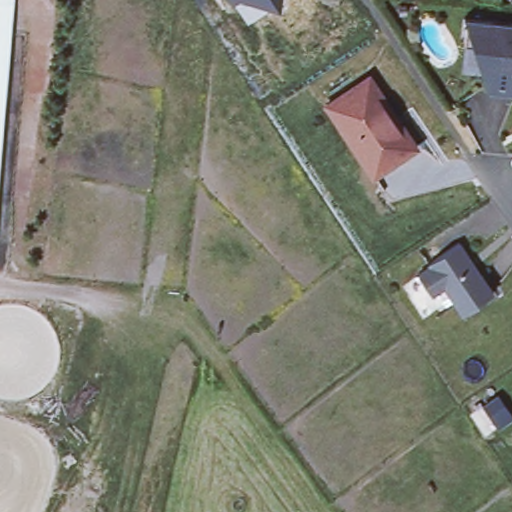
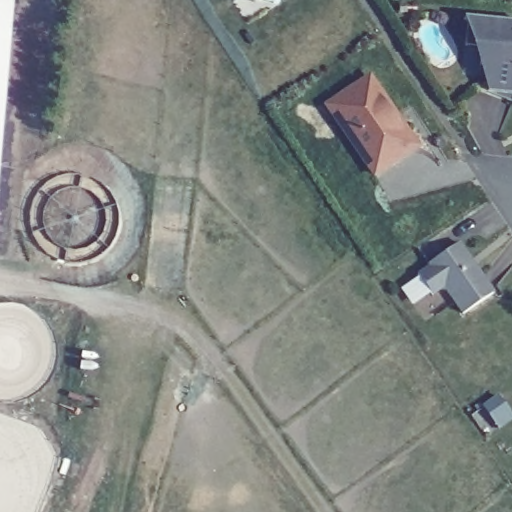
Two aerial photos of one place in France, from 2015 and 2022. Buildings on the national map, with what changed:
unchanged [(261,0),(277,0),(276,3),(261,0)]
unchanged [(0,140),(0,4),(12,5),(0,140)]
unchanged [(490,88),(482,84),(491,63),(482,61),(483,44),(467,42),(470,16),(465,16),(466,15),(512,20),(512,96),(490,88)]
unchanged [(363,80),(396,130),(400,127),(414,147),(372,176),(324,106),(363,80)]
unchanged [(428,265),(427,264),(457,243),(491,293),(461,314),(442,285),(430,294),(416,274),(428,265)]
unchanged [(507,413),(492,424),(481,406),(496,396),(507,413)]

